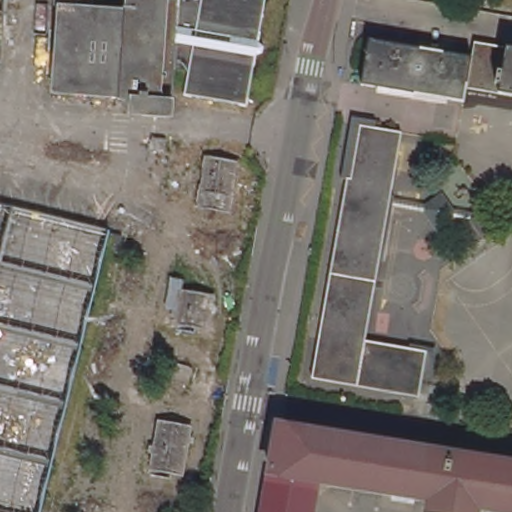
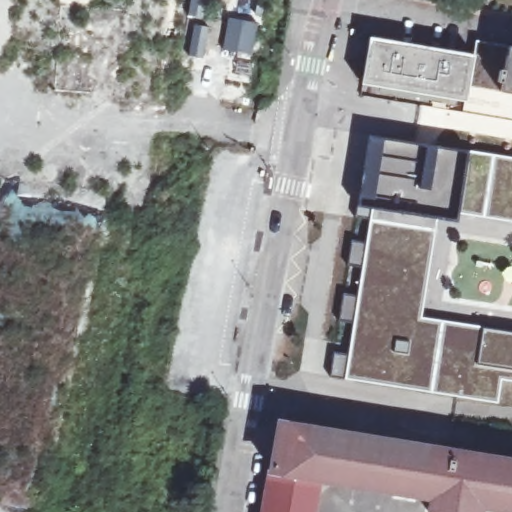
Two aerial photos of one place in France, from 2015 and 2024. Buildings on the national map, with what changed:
demolished [(2,64),(0,64),(0,0),(7,0),(2,64)]
demolished [(92,10),(129,12),(130,0),(270,0),(262,45),(267,47),(266,54),(260,55),(252,107),(187,96),(191,70),(177,68),(174,116),(133,114),(134,99),(58,94),(63,8),(57,7),(57,0),(93,0),(92,10)]
new [(251,54),(222,47),(229,18),(258,25),(251,54)]
unchanged [(467,101),(365,82),(374,36),(475,55),(477,40),(512,47),(512,94),(470,86),(467,101)]
demolished [(369,336),(430,348),(422,394),(315,373),(350,174),(355,175),(363,123),(405,131),(369,336)]
new [(497,404),(344,380),(330,378),(334,354),(347,356),(353,321),(339,319),(343,295),(357,297),(362,267),(347,265),(350,242),(365,244),(369,221),(355,218),(357,207),(367,137),(468,152),(494,156),(512,159),(512,222),(484,218),(459,214),(457,222),(433,220),(432,231),(420,318),(442,321),(483,328),(512,333),(512,382),(500,380),(497,404)]
demolished [(241,159),(232,207),(202,202),(210,154),(241,159)]
demolished [(46,512),(0,512),(0,210),(109,235),(46,512)]
demolished [(216,293),(210,325),(179,319),(184,286),(216,293)]
demolished [(194,422),(185,470),(154,464),(162,416),(194,422)]
unchanged [(512,459),(512,507),(480,501),(478,512),(448,512),(430,508),(433,492),(320,473),(314,512),(265,512),(281,419),(512,459)]

